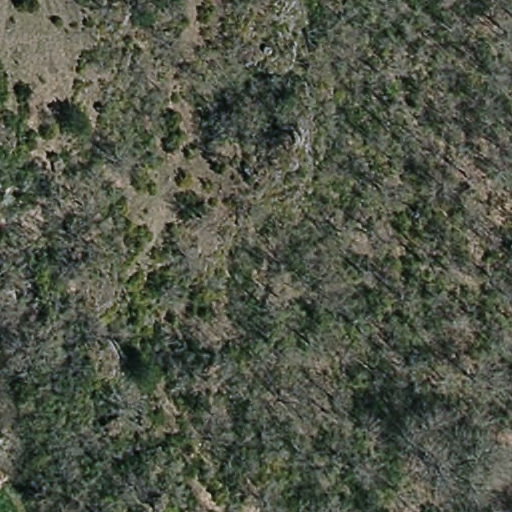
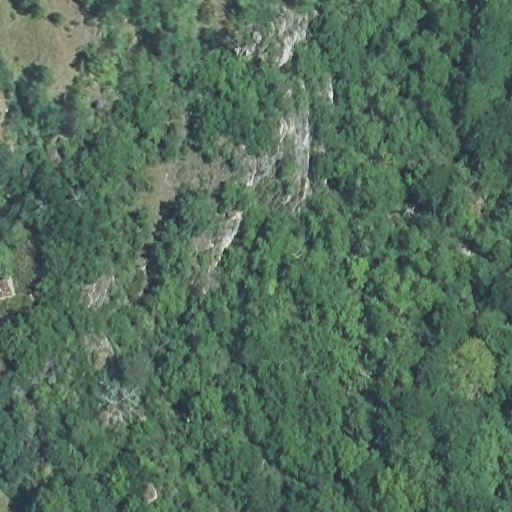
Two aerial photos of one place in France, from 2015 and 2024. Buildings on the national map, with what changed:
unchanged [(0,301),(0,273),(7,271),(13,298),(0,301)]

